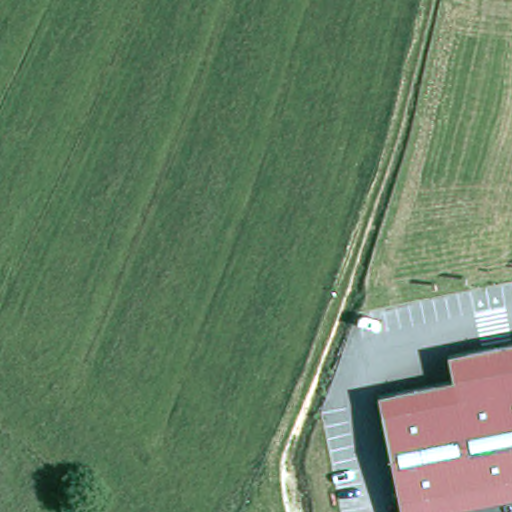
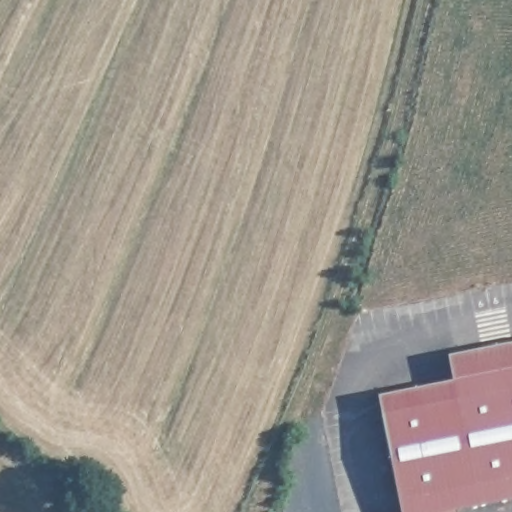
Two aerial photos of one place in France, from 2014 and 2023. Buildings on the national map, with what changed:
unchanged [(453,383),(447,357),(512,343),(512,499),(457,510),(457,512),(399,512),(377,397),(453,383)]

